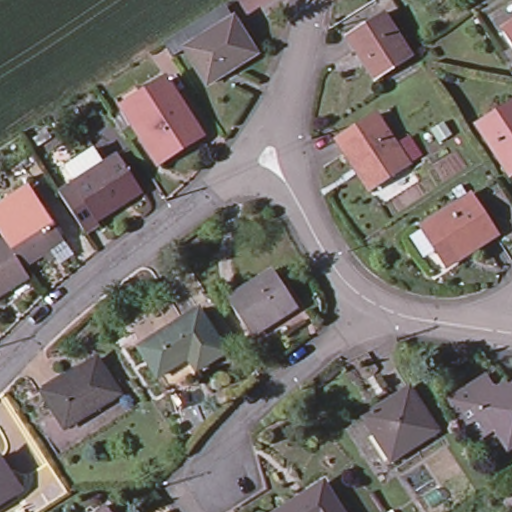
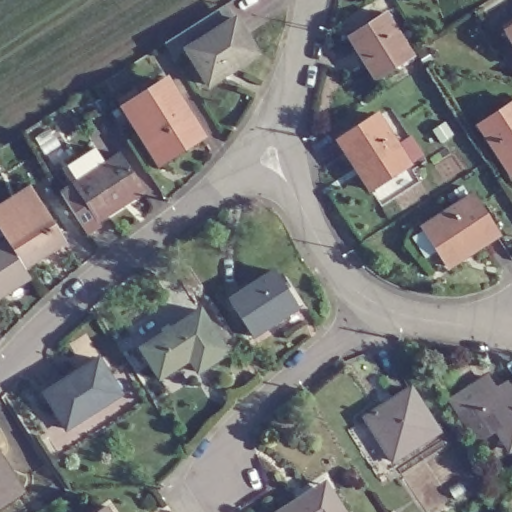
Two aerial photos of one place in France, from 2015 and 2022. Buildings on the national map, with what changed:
unchanged [(410,51),(377,72),(349,28),(381,8),(410,51)]
unchanged [(229,16),(250,51),(202,81),(180,46),(229,16)]
unchanged [(512,49),(500,28),(512,21),(512,49)]
unchanged [(124,110),(122,108),(127,105),(162,80),(197,129),(157,157),(143,137),(134,124),(122,132),(112,118),(124,110)]
unchanged [(474,125),(510,101),(512,103),(512,170),(505,174),(474,125)]
unchanged [(407,157),(367,185),(333,135),(372,108),(407,157)]
unchanged [(75,182),(65,167),(94,149),(104,164),(118,155),(138,187),(142,193),(122,205),(95,223),(97,226),(85,234),(58,193),(70,185),(75,182)]
unchanged [(5,228),(0,222),(0,206),(32,186),(44,202),(68,238),(28,264),(14,243),(5,228)]
unchanged [(475,193),(500,231),(450,263),(425,226),(475,193)]
unchanged [(36,277),(0,301),(0,252),(14,243),(28,264),(36,277)]
unchanged [(272,271),(292,308),(247,333),(227,295),(272,271)]
unchanged [(200,302),(227,346),(200,364),(192,352),(163,372),(142,339),(200,302)]
unchanged [(90,358),(114,394),(62,429),(38,393),(90,358)]
unchanged [(474,409),(490,433),(472,444),(444,403),(480,379),(492,397),(474,409)]
unchanged [(490,433),(474,409),(492,397),(512,384),(512,445),(502,451),(490,433)]
unchanged [(433,426),(394,453),(365,411),(405,385),(433,426)]
unchanged [(22,487),(0,502),(0,456),(22,487)]
unchanged [(320,483),(326,491),(341,512),(278,512),(297,499),(320,483)]
unchanged [(505,512),(499,503),(512,494),(512,512),(505,512)]
unchanged [(104,512),(97,512),(102,508),(104,512)]

